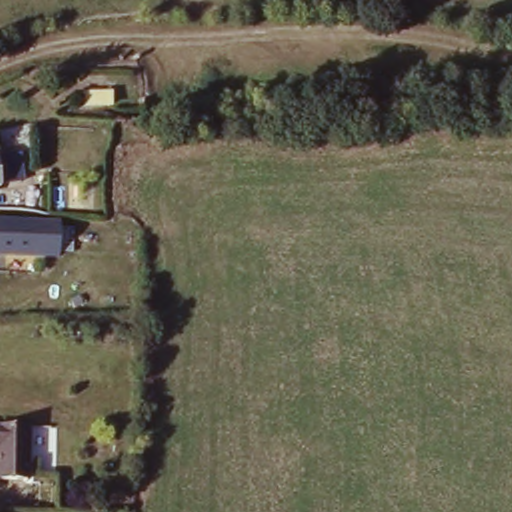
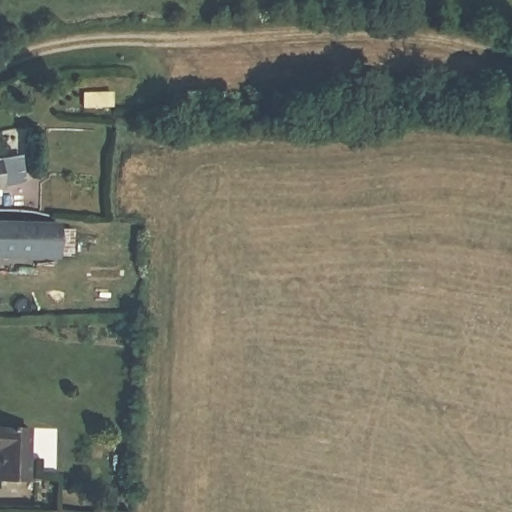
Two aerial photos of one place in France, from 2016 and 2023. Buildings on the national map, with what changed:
unchanged [(6,182),(0,183),(0,157),(5,156),(6,182)]
unchanged [(0,218),(61,220),(61,257),(0,254),(0,218)]
unchanged [(30,479),(1,480),(0,442),(0,427),(30,426),(30,479)]

